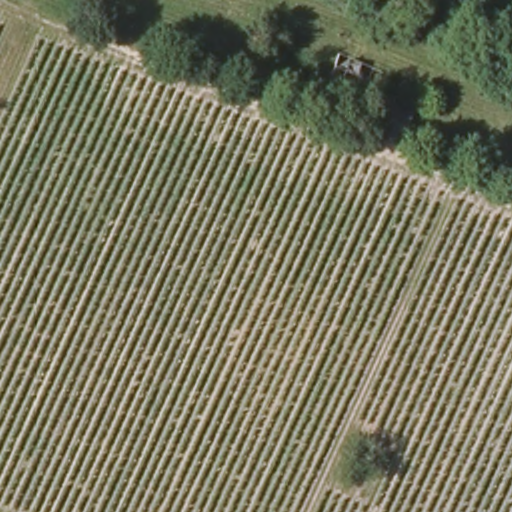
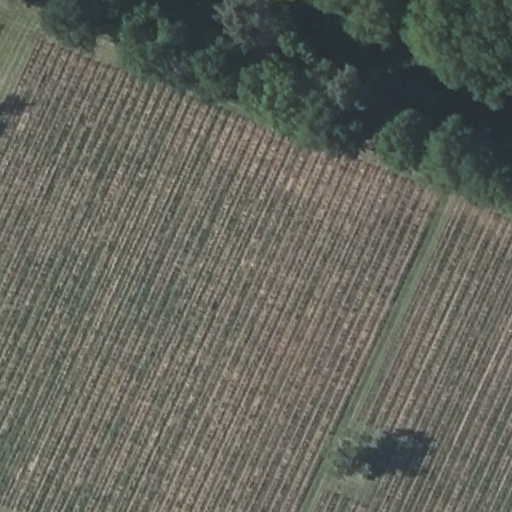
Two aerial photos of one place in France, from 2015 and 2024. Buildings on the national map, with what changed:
unchanged [(372,133),(388,95),(417,112),(400,146),(372,133)]

